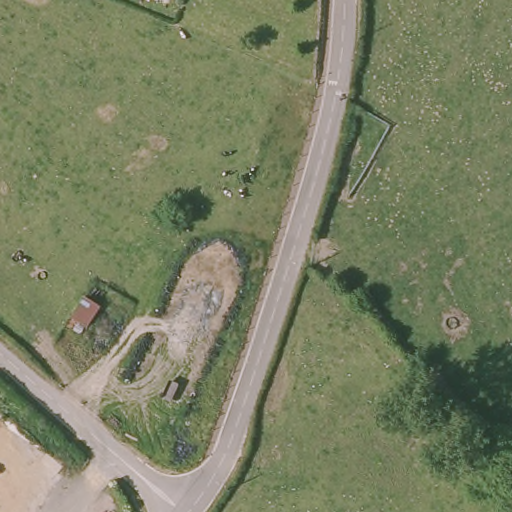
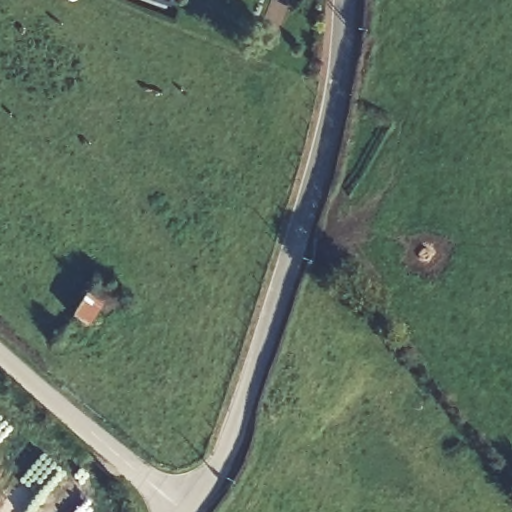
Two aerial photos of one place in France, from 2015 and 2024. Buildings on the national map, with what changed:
unchanged [(100,313),(89,334),(74,327),(85,305),(100,313)]

